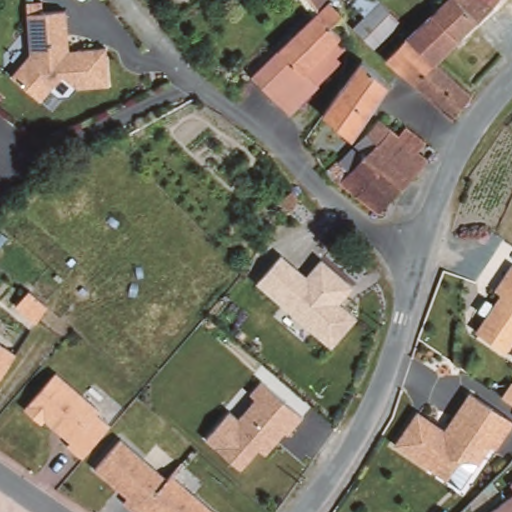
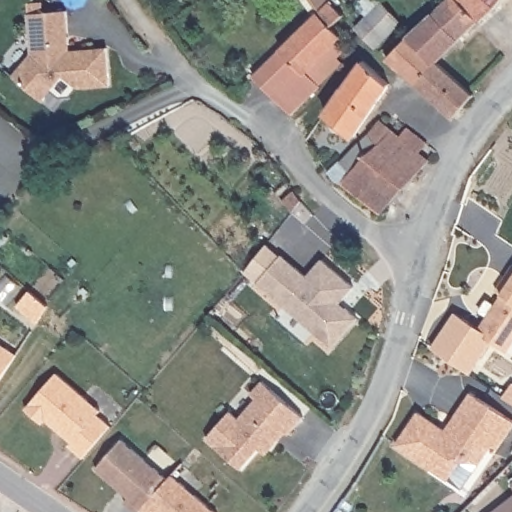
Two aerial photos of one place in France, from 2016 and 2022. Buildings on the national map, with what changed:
unchanged [(33,49),(29,1),(36,0),(42,0),(44,10),(70,7),(74,46),(110,45),(112,85),(80,89),(66,76),(45,101),(13,75),(33,49)]
unchanged [(254,74),(275,54),(298,30),(304,25),(313,15),(319,10),(314,0),(330,0),(327,3),(328,3),(332,4),(343,14),(335,22),(342,31),(340,35),(347,41),(337,52),(329,45),(317,59),(327,67),(330,70),(321,80),(322,81),(321,82),(291,110),(252,75),(254,74)]
unchanged [(366,20),(386,0),(397,11),(406,20),(385,39),(366,20)]
unchanged [(416,30),(443,0),(503,0),(498,7),(483,22),(481,21),(437,62),(408,37),(416,30)]
unchanged [(400,47),(393,42),(401,35),(406,39),(408,37),(437,62),(417,83),(388,57),(400,47)]
unchanged [(354,66),(360,60),(387,79),(382,85),(350,131),(322,114),(354,66)]
unchanged [(437,62),(475,96),(456,118),(417,83),(437,62)]
unchanged [(376,115),(396,134),(405,124),(423,141),(417,151),(426,158),(402,187),(360,150),(371,136),(372,135),(365,129),(376,115)]
unchanged [(365,129),(372,135),(371,136),(360,150),(402,187),(377,215),(362,201),(339,182),(336,186),(331,183),(328,174),(365,129)]
unchanged [(341,301),(359,317),(334,347),(257,283),(283,254),(308,274),(322,259),(356,286),(341,301)]
unchanged [(504,295),(498,291),(512,269),(512,344),(507,351),(479,330),(504,295)]
new [(28,306),(45,321),(32,337),(12,320),(28,306)]
new [(470,374),(431,346),(456,312),(479,330),(492,340),(470,374)]
unchanged [(19,356),(0,384),(0,348),(3,343),(19,356)]
unchanged [(57,368),(104,410),(100,415),(112,426),(85,458),(68,445),(72,442),(51,421),(46,425),(27,406),(57,368)]
unchanged [(227,411),(239,421),(258,398),(249,390),(260,377),(302,412),(267,453),(255,443),(237,463),(205,436),(227,411)]
new [(502,397),(512,385),(512,405),(502,397)]
demolished [(512,386),(512,401),(505,397),(512,386)]
unchanged [(420,411),(446,428),(471,390),(512,419),(512,429),(500,447),(493,442),(481,463),(473,459),(460,461),(447,478),(398,444),(420,411)]
unchanged [(167,477),(172,472),(218,512),(148,512),(142,506),(137,511),(124,500),(127,495),(94,465),(120,436),(167,477)]
unchanged [(492,512),(512,496),(512,512),(492,512)]

